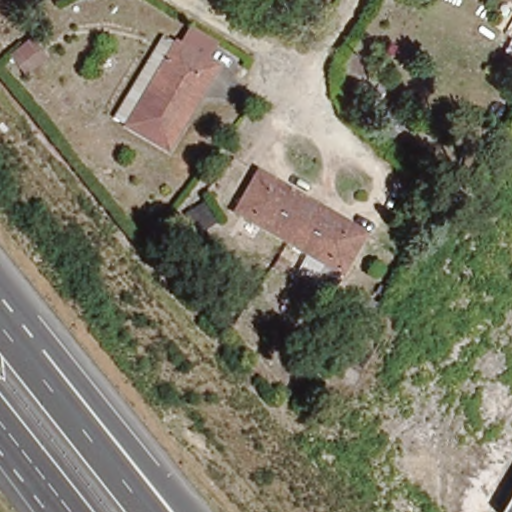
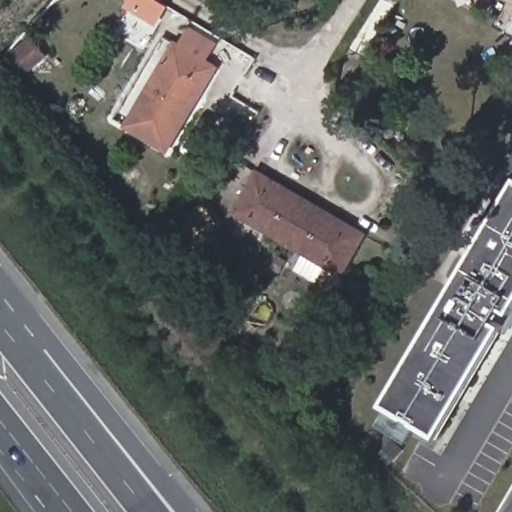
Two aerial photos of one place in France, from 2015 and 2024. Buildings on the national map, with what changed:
unchanged [(508,0),(511,0),(510,1),(508,0)]
unchanged [(180,43),(182,44),(194,26),(220,43),(208,61),(217,67),(176,131),(138,107),(177,47),(180,43)]
new [(161,38),(177,47),(138,107),(176,131),(167,155),(125,128),(126,125),(114,118),(161,38)]
unchanged [(363,236),(338,273),(237,207),(263,167),(363,236)]
new [(496,321),(504,326),(440,433),(387,403),(512,192),(512,310),(505,305),(496,321)]
unchanged [(512,512),(504,512),(512,498),(512,512)]

